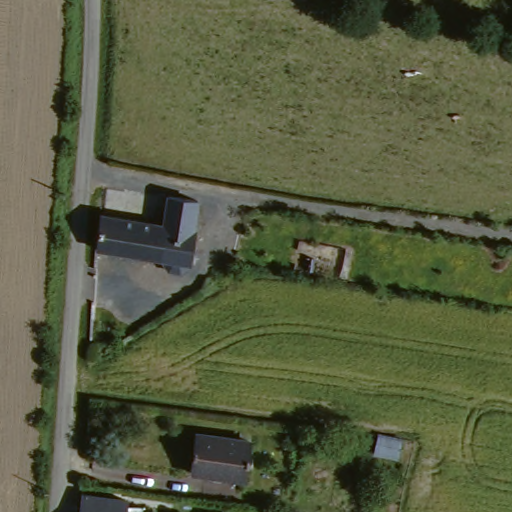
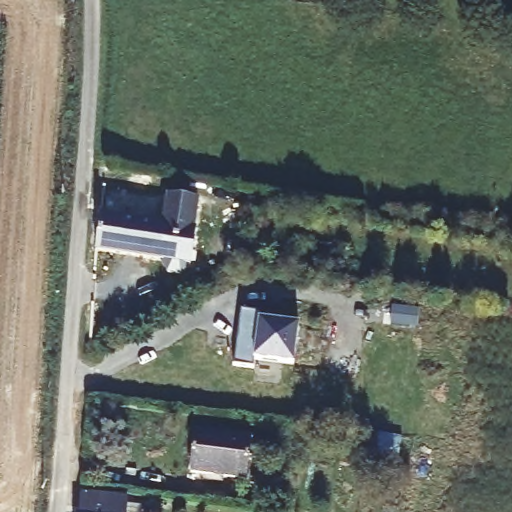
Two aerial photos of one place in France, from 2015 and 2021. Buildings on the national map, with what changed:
unchanged [(100,215),(165,224),(169,192),(201,198),(191,264),(95,252),(100,215)]
new [(259,313),(257,319),(299,326),(294,365),(254,359),(252,368),(235,364),(242,310),(259,313)]
unchanged [(258,439),(251,477),(199,468),(204,428),(258,439)]
unchanged [(397,455),(380,452),(385,429),(405,434),(397,455)]
unchanged [(135,499),(135,504),(150,505),(149,512),(83,512),(85,492),(135,499)]

